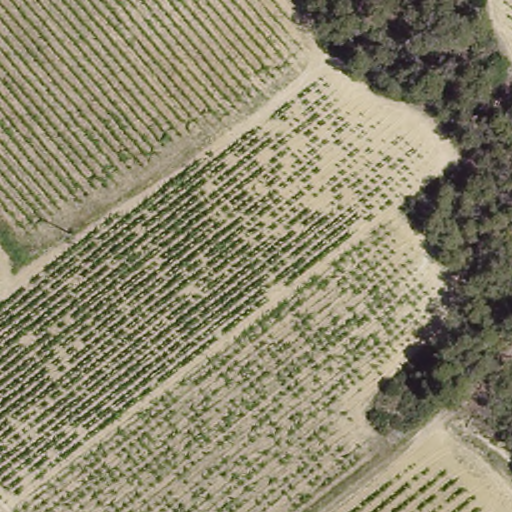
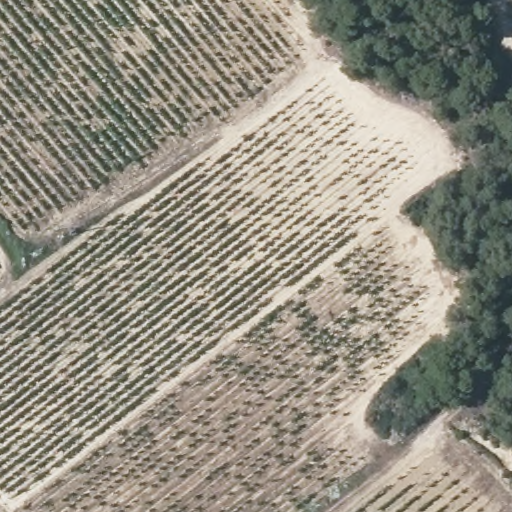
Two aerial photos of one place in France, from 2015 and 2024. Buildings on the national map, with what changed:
unchanged [(512,75),(512,93),(488,106),(473,81),(506,63),(512,75)]

